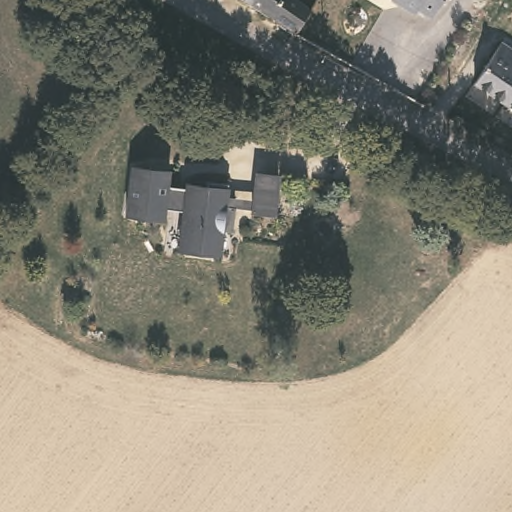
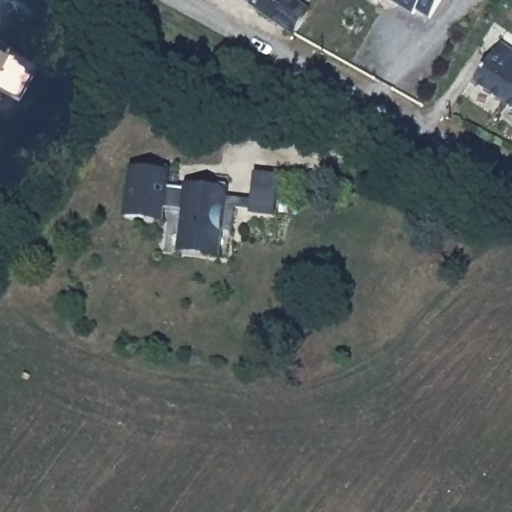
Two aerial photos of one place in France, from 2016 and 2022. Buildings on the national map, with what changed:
unchanged [(297,33),(249,0),(300,0),(311,8),(297,33)]
unchanged [(416,10),(413,14),(397,4),(398,2),(395,0),(441,0),(429,19),(416,10)]
unchanged [(472,85),(499,43),(512,51),(512,58),(508,64),(512,66),(512,93),(504,104),(472,85)]
new [(4,51),(6,46),(34,63),(18,92),(0,83),(0,49),(4,51)]
unchanged [(512,93),(512,109),(504,104),(512,93)]
unchanged [(223,189),(219,210),(228,213),(223,237),(206,234),(202,255),(175,250),(179,228),(174,227),(177,213),(158,209),(158,212),(140,208),(139,216),(120,212),(129,164),(147,168),(147,164),(167,168),(163,185),(172,188),(172,190),(181,192),(182,189),(200,194),(202,185),(223,189)]
unchanged [(281,179),(273,217),(251,212),(259,174),(281,179)]

